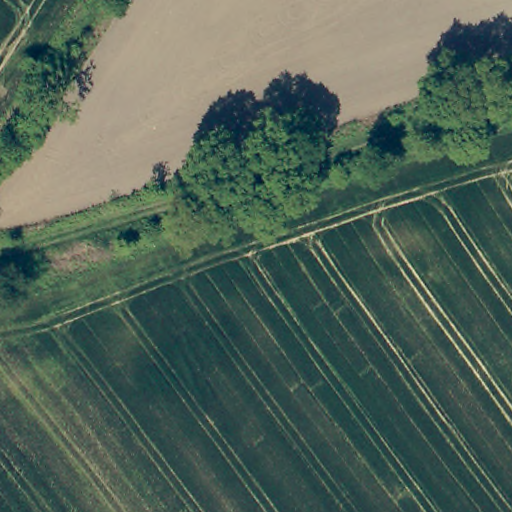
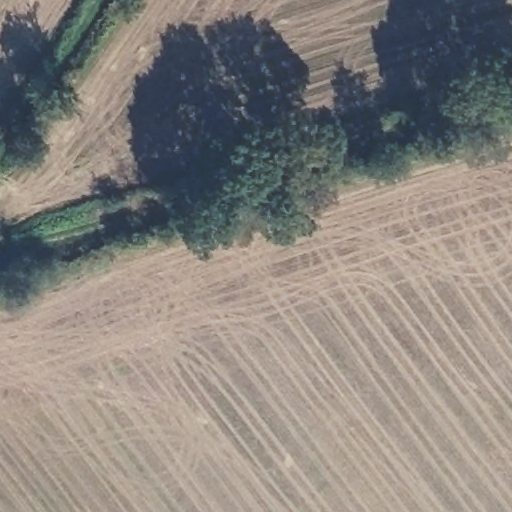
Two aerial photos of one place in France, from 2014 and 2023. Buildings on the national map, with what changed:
[]

